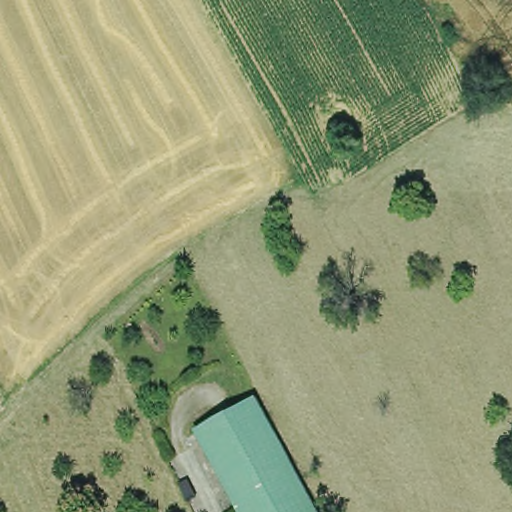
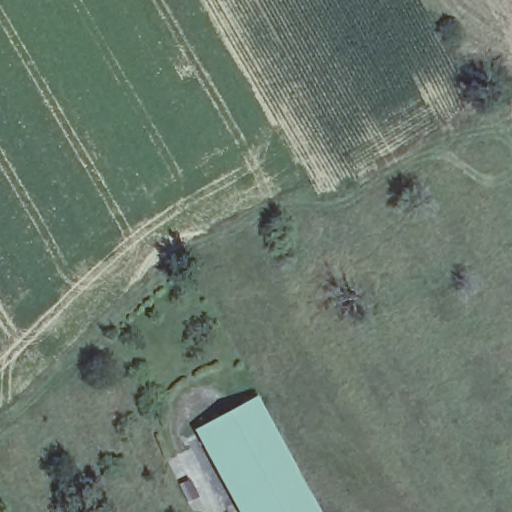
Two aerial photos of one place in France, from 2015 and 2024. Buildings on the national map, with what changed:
unchanged [(474,57),(488,85),(465,97),(450,68),(474,57)]
unchanged [(197,430),(256,397),(319,512),(242,512),(197,430)]

